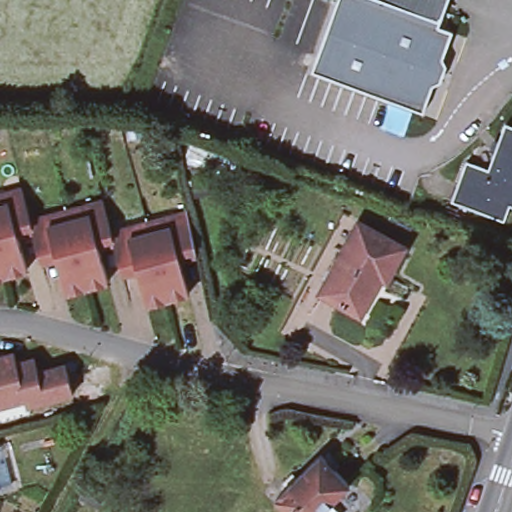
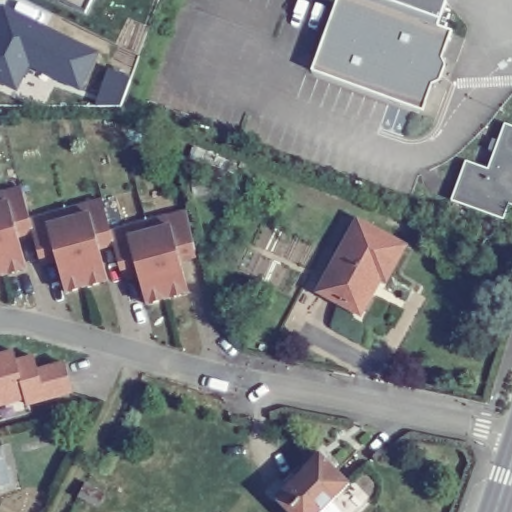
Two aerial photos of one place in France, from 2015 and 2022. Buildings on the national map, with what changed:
new [(62,0),(92,0),(86,12),(62,0)]
unchanged [(447,0),(446,2),(437,26),(452,31),(442,57),(422,66),(432,86),(422,111),(312,71),(337,0),(447,0)]
new [(82,91),(29,67),(17,91),(0,82),(0,10),(2,5),(99,52),(82,91)]
new [(130,78),(120,108),(95,106),(107,67),(130,78)]
unchanged [(465,162),(488,170),(505,124),(512,127),(512,206),(509,205),(503,220),(452,201),(465,162)]
unchanged [(44,258),(35,227),(21,231),(32,269),(0,278),(0,206),(12,202),(10,193),(26,189),(35,220),(50,216),(53,226),(94,215),(90,205),(92,204),(107,200),(115,232),(131,227),(134,237),(174,227),(172,217),(192,212),(200,250),(183,254),(194,293),(157,302),(151,305),(150,302),(140,266),(125,270),(116,239),(102,242),(112,281),(109,282),(70,292),(60,254),(44,258)]
unchanged [(385,280),(380,277),(360,313),(320,292),(357,222),(403,247),(385,280)]
unchanged [(15,365),(32,359),(37,373),(63,365),(72,393),(28,407),(26,401),(0,409),(0,358),(12,355),(15,365)]
unchanged [(275,499),(320,455),(350,484),(330,503),(339,512),(288,512),(275,499)]
unchanged [(85,483),(105,493),(97,507),(79,497),(85,483)]

